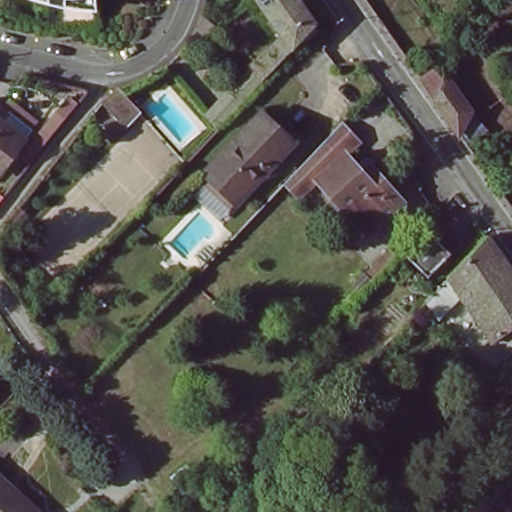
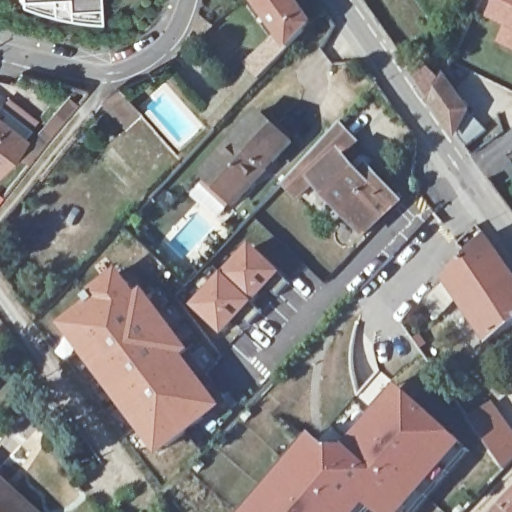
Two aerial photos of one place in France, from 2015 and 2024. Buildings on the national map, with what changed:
unchanged [(94,25),(63,27),(10,11),(10,0),(92,0),(94,25)]
unchanged [(243,62),(276,31),(254,0),(295,0),(309,20),(286,45),(256,76),(243,62)]
new [(497,43),(503,29),(490,20),(500,0),(512,0),(512,51),(497,43)]
unchanged [(199,14),(212,25),(201,35),(194,30),(199,14)]
unchanged [(422,82),(438,68),(447,79),(449,75),(475,112),(461,136),(436,102),(422,82)]
unchanged [(121,126),(102,105),(115,95),(133,115),(121,126)]
unchanged [(238,203),(205,172),(237,138),(261,111),(268,117),(295,143),(238,203)]
unchanged [(0,170),(0,121),(23,140),(0,170)]
new [(364,143),(352,160),(365,173),(373,165),(409,202),(366,241),(316,186),(299,201),(284,184),(343,124),(364,143)]
unchanged [(78,169),(61,150),(73,136),(92,157),(78,169)]
unchanged [(419,163),(405,144),(416,137),(429,156),(437,167),(430,172),(422,161),(419,163)]
demolished [(366,171),(397,205),(367,232),(337,198),(366,171)]
unchanged [(18,209),(28,216),(18,227),(9,220),(18,209)]
demolished [(448,254),(426,277),(404,257),(427,233),(448,254)]
unchanged [(512,272),(512,326),(489,342),(445,278),(486,235),(512,272)]
new [(251,242),(284,273),(223,336),(193,307),(251,242)]
new [(90,307),(86,301),(121,275),(125,281),(133,274),(226,401),(159,452),(65,326),(90,307)]
new [(353,470),(363,460),(351,449),(403,389),(463,445),(402,512),(384,512),(372,500),(362,512),(241,512),(312,431),(353,470)]
new [(494,401),(512,428),(512,461),(505,468),(471,418),(494,401)]
unchanged [(0,474),(0,470),(2,472),(0,474)]
unchanged [(0,512),(0,480),(38,512),(0,512)]
unchanged [(494,512),(512,493),(512,512),(494,512)]

